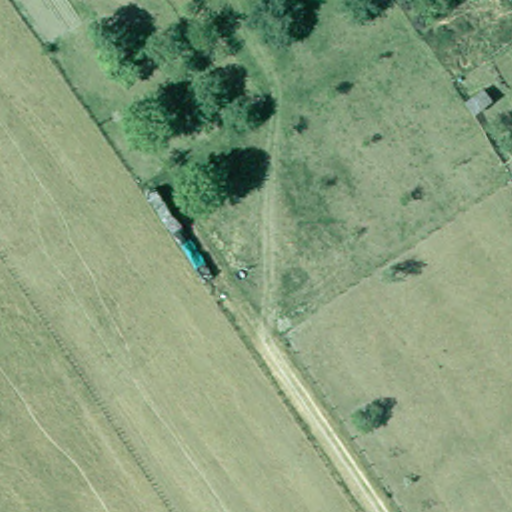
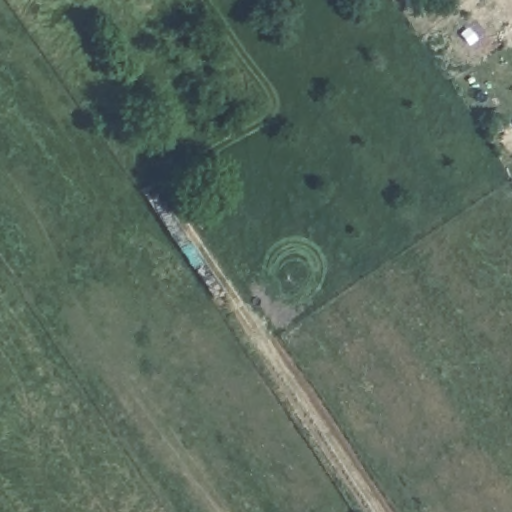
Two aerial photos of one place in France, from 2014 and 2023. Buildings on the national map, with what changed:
unchanged [(491,100),(474,115),(466,104),(483,90),(491,100)]

